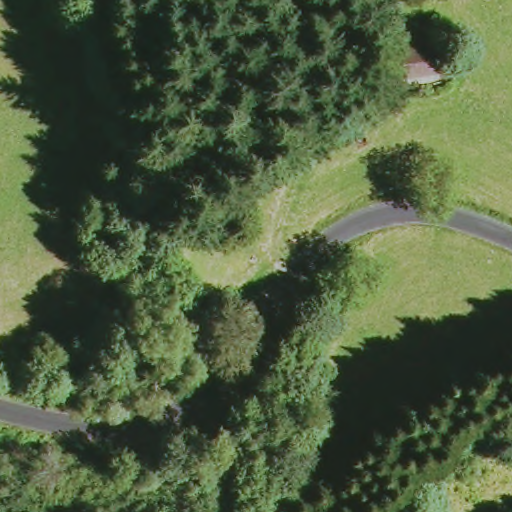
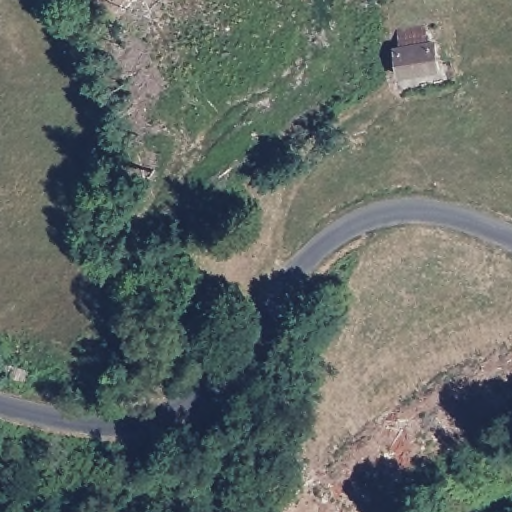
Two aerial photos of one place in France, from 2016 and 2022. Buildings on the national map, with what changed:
unchanged [(436,75),(393,76),(392,49),(392,31),(421,30),(421,47),(434,46),(436,75)]

